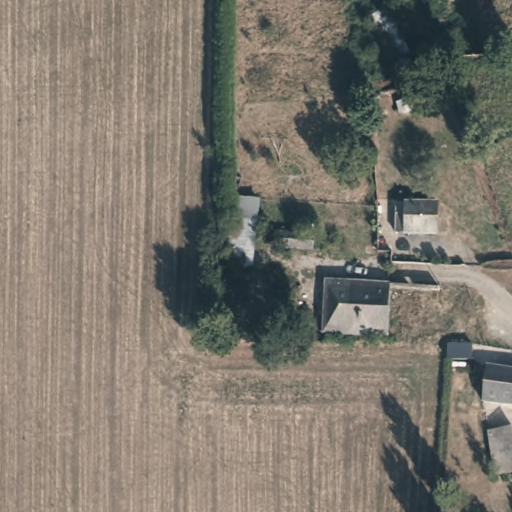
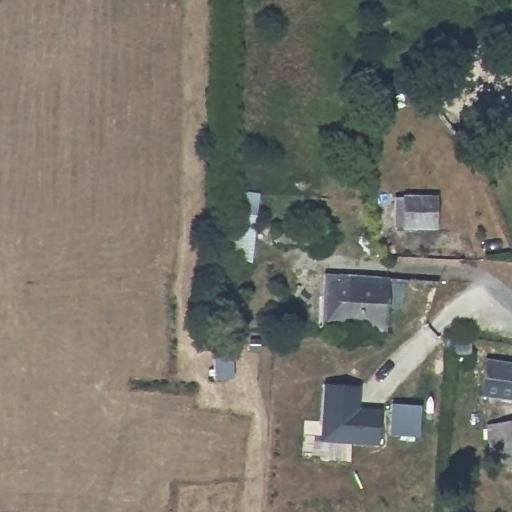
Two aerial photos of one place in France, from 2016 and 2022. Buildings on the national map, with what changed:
unchanged [(232,195),(262,196),(256,261),(225,265),(232,195)]
unchanged [(442,204),(441,232),(400,230),(403,200),(442,204)]
unchanged [(313,229),(313,244),(288,243),(288,229),(313,229)]
unchanged [(320,332),(322,277),(390,282),(390,288),(385,335),(320,332)]
unchanged [(447,338),(473,338),(472,354),(446,353),(447,338)]
unchanged [(512,396),(480,389),(485,360),(512,365),(512,396)]
new [(317,441),(321,382),(360,384),(358,408),(380,409),(377,446),(317,441)]
unchanged [(512,482),(508,482),(505,470),(493,471),(490,427),(512,426),(512,482)]

